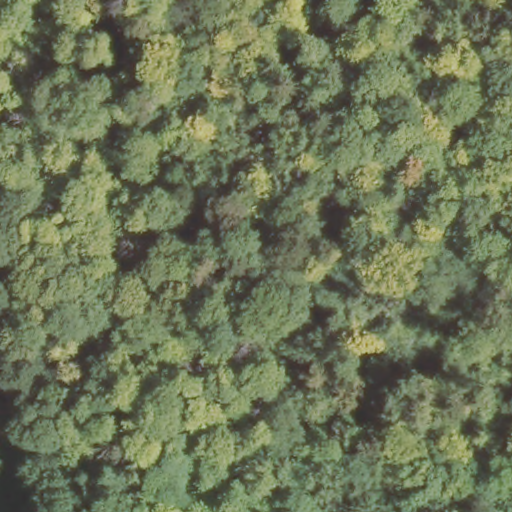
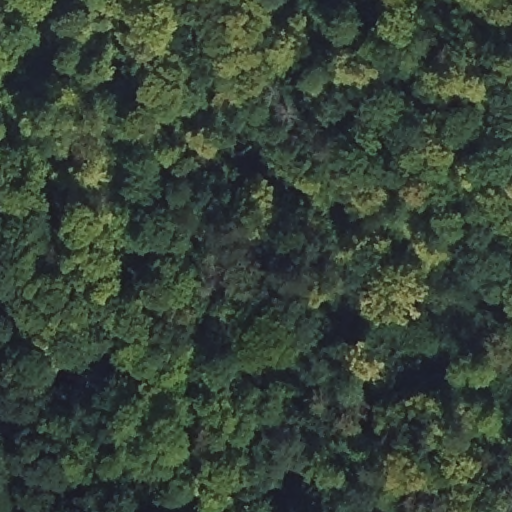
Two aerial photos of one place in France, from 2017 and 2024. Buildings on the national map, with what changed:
unchanged [(236,12),(206,19),(202,0),(234,0),(236,12)]

